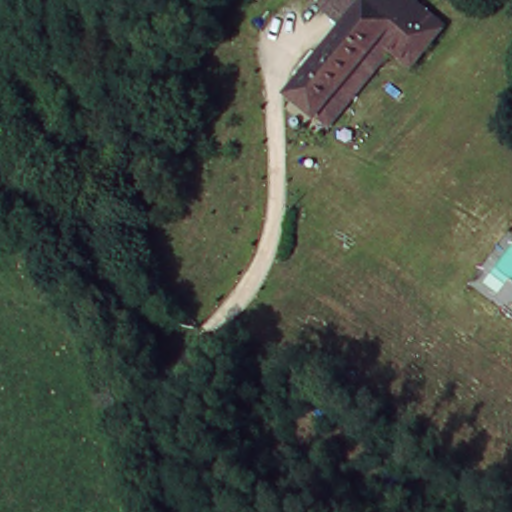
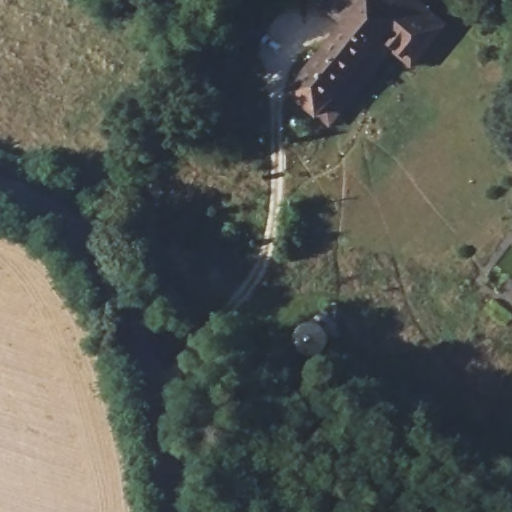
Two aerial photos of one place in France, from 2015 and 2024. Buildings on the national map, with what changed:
unchanged [(443,30),(408,65),(387,48),(376,38),(311,111),(287,89),(345,24),(326,7),(332,0),(365,0),(366,1),(367,0),(413,0),(443,30)]
unchanged [(324,122),(311,111),(376,38),(387,48),(324,122)]

